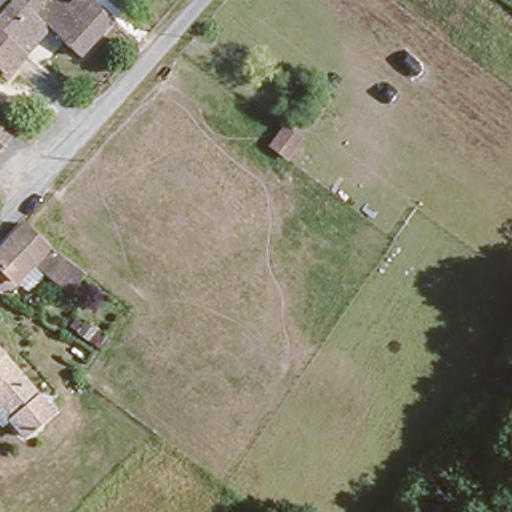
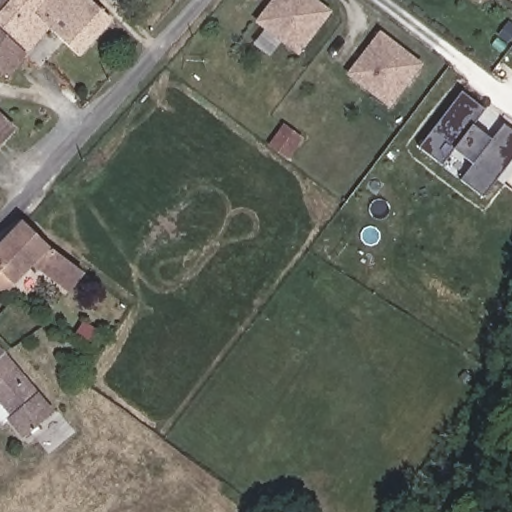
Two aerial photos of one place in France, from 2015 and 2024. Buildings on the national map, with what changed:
unchanged [(90,0),(103,12),(70,45),(41,19),(2,62),(0,61),(0,0),(90,0)]
new [(272,0),(317,0),(332,12),(298,56),(254,23),(272,0)]
unchanged [(512,0),(512,5),(505,0),(512,0)]
new [(347,74),(379,30),(423,65),(390,109),(347,74)]
new [(418,147),(462,91),(512,130),(512,160),(482,197),(418,147)]
unchanged [(16,130),(0,146),(0,113),(16,130)]
unchanged [(69,289),(32,263),(7,286),(0,291),(0,246),(25,220),(49,247),(82,270),(69,289)]
unchanged [(16,433),(4,421),(11,414),(0,401),(0,348),(12,360),(53,408),(38,425),(23,440),(16,433)]
unchanged [(39,370),(47,378),(40,385),(33,376),(39,370)]

